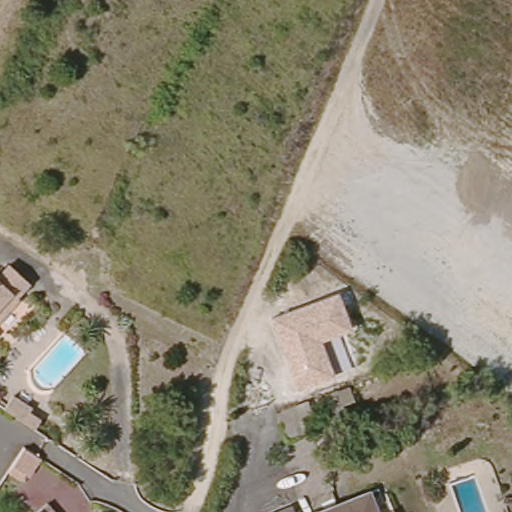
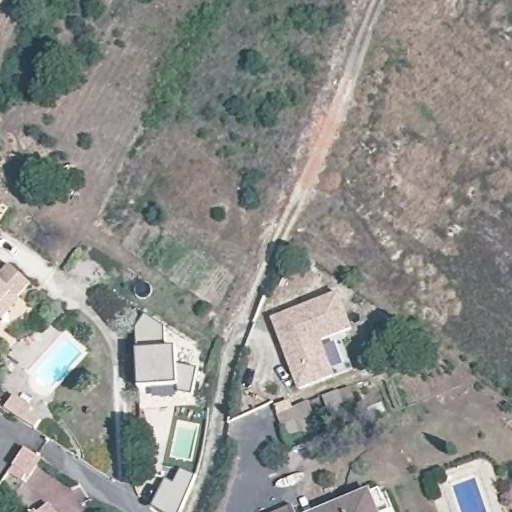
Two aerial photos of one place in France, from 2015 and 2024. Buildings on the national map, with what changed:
unchanged [(10,263),(32,280),(20,297),(0,321),(0,278),(10,263)]
unchanged [(323,341),(335,376),(296,391),(271,319),(338,293),(350,330),(323,341)]
new [(146,315),(165,329),(166,349),(176,349),(177,364),(197,369),(191,395),(177,392),(177,385),(140,388),(136,329),(146,315)]
unchanged [(0,343),(0,332),(6,336),(0,343)]
unchanged [(15,396),(33,409),(31,414),(45,424),(38,436),(4,412),(15,396)]
unchanged [(25,451),(41,462),(30,481),(26,478),(22,484),(10,476),(13,469),(25,451)]
new [(167,479),(173,483),(180,470),(196,479),(181,512),(159,512),(152,507),(167,479)]
unchanged [(374,491),(382,512),(318,512),(374,491)]
unchanged [(295,504),(299,512),(273,512),(295,504)]
unchanged [(45,511),(46,512),(44,512),(45,511)]

